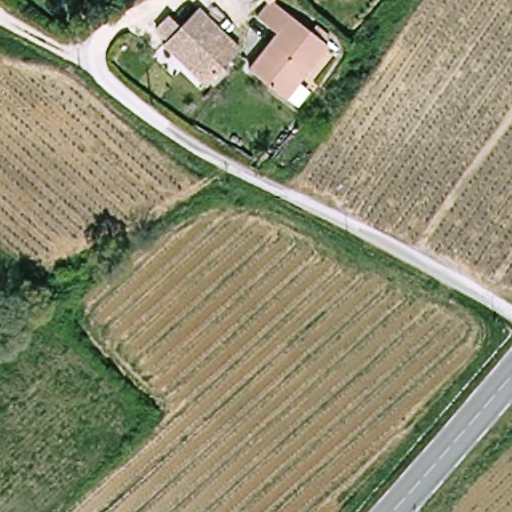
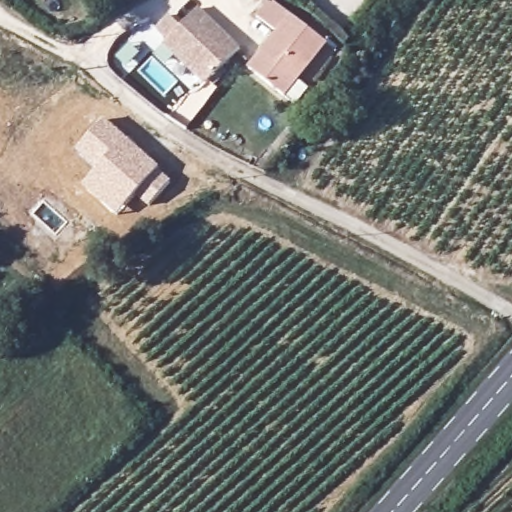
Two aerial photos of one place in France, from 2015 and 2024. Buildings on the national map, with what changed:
unchanged [(266,3),(263,0),(269,0),(266,3)]
unchanged [(321,43),(281,90),(251,65),(273,39),(256,24),(274,3),(321,43)]
unchanged [(204,12),(246,49),(213,85),(171,48),(204,12)]
new [(96,168),(76,150),(104,119),(159,168),(158,169),(171,181),(149,207),(136,195),(117,216),(81,186),(96,168)]

